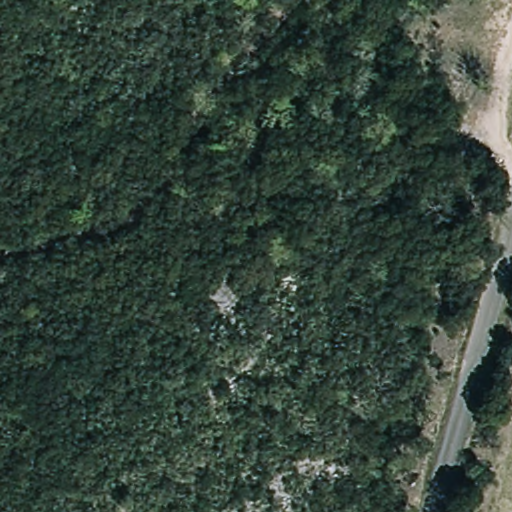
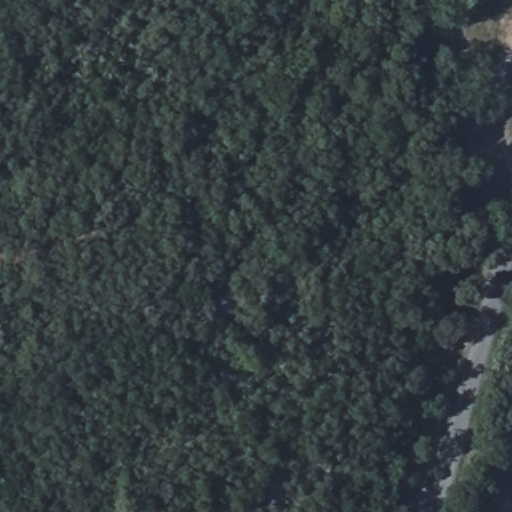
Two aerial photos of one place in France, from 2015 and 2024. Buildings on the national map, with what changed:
[]

